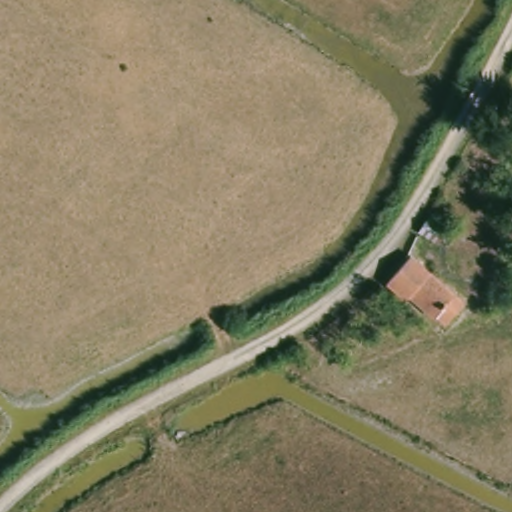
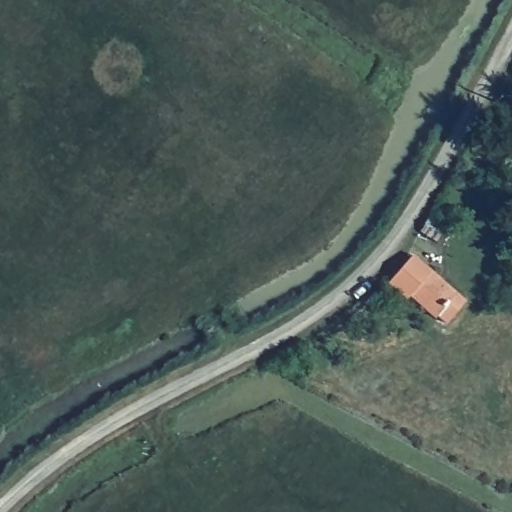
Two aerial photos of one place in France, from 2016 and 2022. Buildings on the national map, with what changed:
unchanged [(432,316),(429,321),(405,299),(400,304),(383,289),(407,261),(457,300),(439,320),(432,316)]
unchanged [(498,302),(501,283),(512,284),(512,304),(498,302)]

